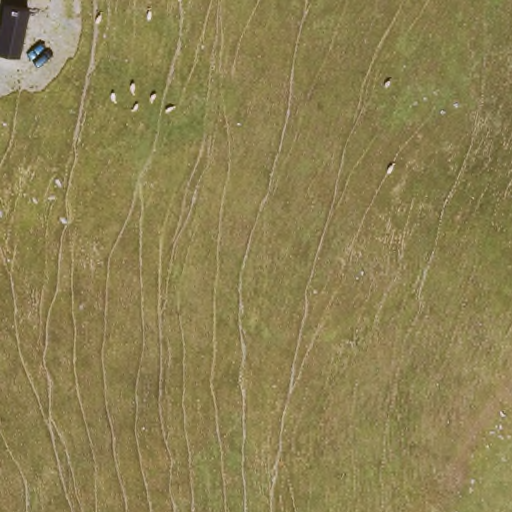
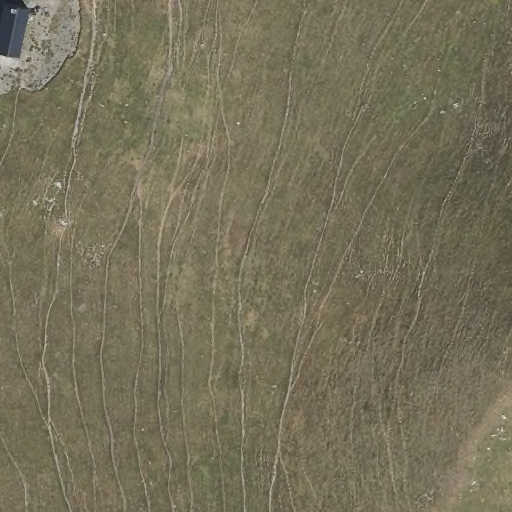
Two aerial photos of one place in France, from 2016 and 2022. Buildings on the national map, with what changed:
unchanged [(19,54),(0,50),(0,28),(5,6),(29,9),(19,54)]

